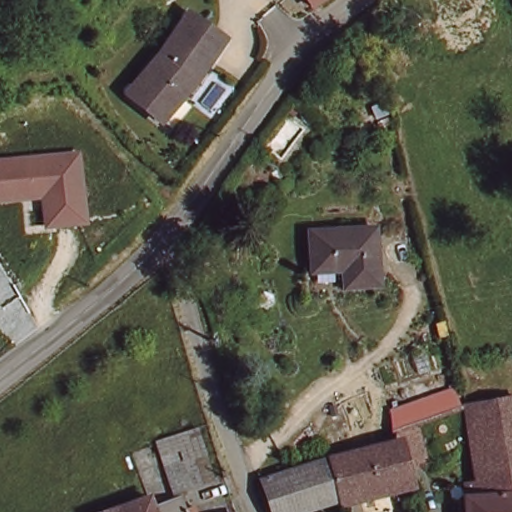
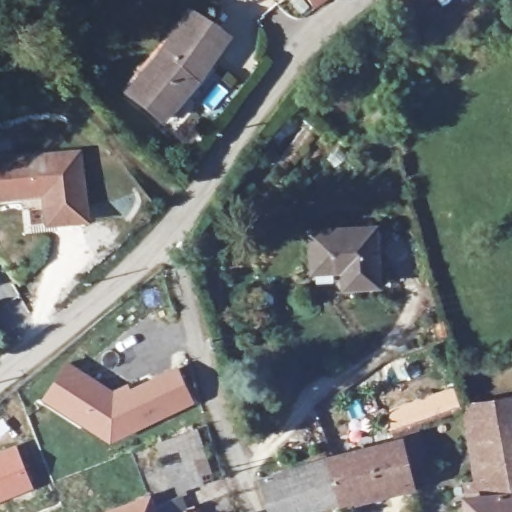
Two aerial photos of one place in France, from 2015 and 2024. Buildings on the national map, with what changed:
unchanged [(305,0),(316,0),(309,5),(305,0)]
unchanged [(220,31),(195,71),(157,116),(124,87),(162,40),(185,6),(220,31)]
unchanged [(83,215),(46,220),(42,190),(0,194),(0,156),(75,148),(83,215)]
unchanged [(380,284),(347,288),(346,266),(312,270),(308,225),(377,221),(380,284)]
new [(66,362),(109,390),(106,395),(112,398),(176,370),(191,400),(110,439),(45,397),(66,362)]
unchanged [(395,425),(389,408),(449,389),(455,405),(409,421),(395,425)]
unchanged [(460,498),(457,485),(474,483),(465,425),(463,403),(511,393),(512,397),(512,512),(459,512),(457,498),(460,498)]
unchanged [(409,421),(421,465),(400,474),(390,441),(387,428),(395,425),(409,421)]
unchanged [(200,423),(222,480),(187,493),(174,496),(154,440),(200,423)]
unchanged [(350,447),(390,441),(400,474),(402,483),(339,500),(337,500),(324,456),(350,447)]
new [(34,488),(0,501),(0,449),(14,443),(34,488)]
unchanged [(302,512),(267,512),(255,480),(324,456),(337,500),(302,512)]
unchanged [(163,512),(102,512),(122,505),(157,492),(160,500),(163,512)]
unchanged [(163,512),(160,500),(174,496),(187,493),(192,512),(163,512)]

